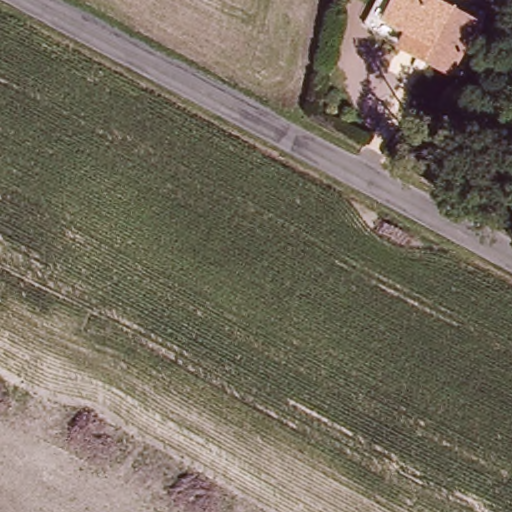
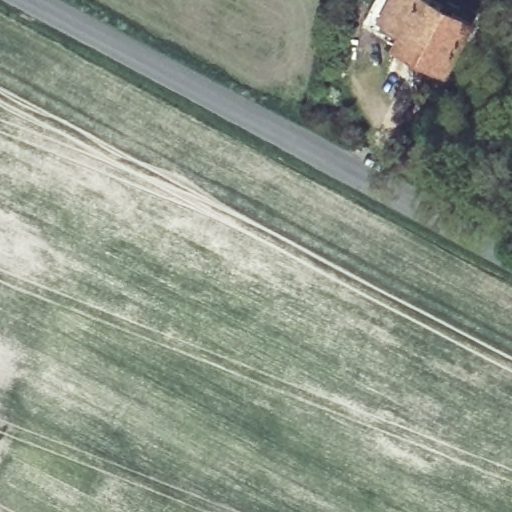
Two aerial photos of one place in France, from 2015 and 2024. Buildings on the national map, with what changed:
unchanged [(383,0),(447,0),(451,2),(452,0),(471,0),(466,9),(482,17),(458,66),(442,59),(436,72),(422,66),(429,52),(371,24),(372,23),(383,0)]

